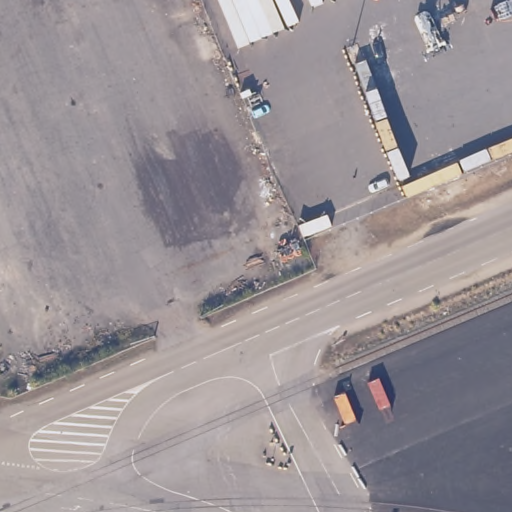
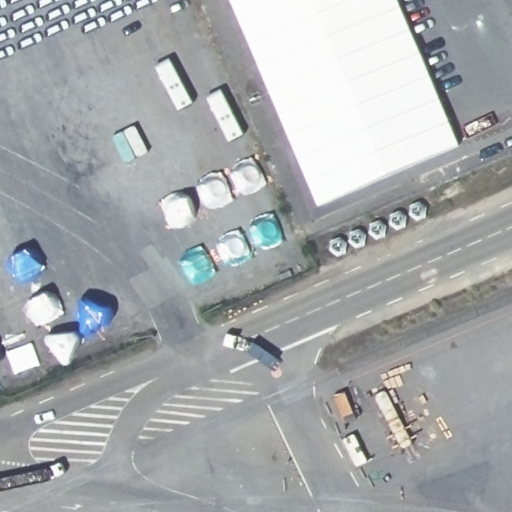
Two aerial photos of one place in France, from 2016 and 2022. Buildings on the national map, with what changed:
new [(318,209),(230,0),(400,0),(462,146),(318,209)]

